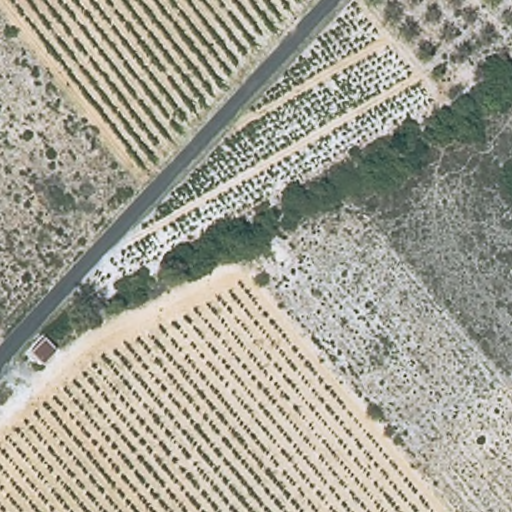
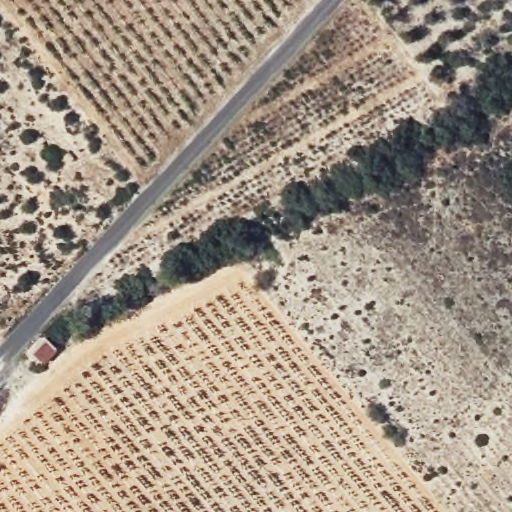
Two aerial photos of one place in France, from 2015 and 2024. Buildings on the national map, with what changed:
unchanged [(33,356),(47,337),(60,347),(47,366),(33,356)]

